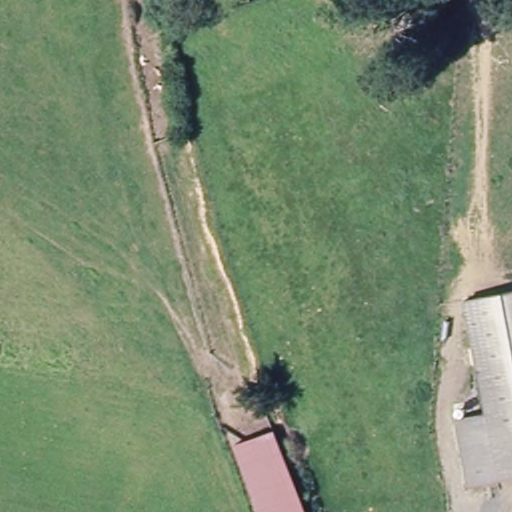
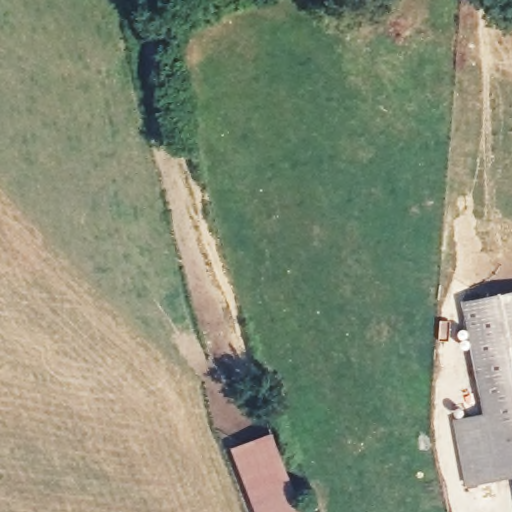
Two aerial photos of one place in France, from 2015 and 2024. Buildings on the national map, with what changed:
unchanged [(454,420),(485,413),(463,302),(512,292),(512,477),(468,485),(454,420)]
unchanged [(300,512),(259,512),(235,451),(264,442),(272,440),(300,512)]

